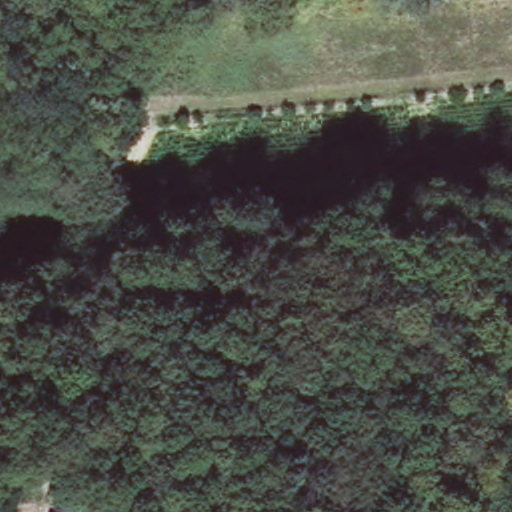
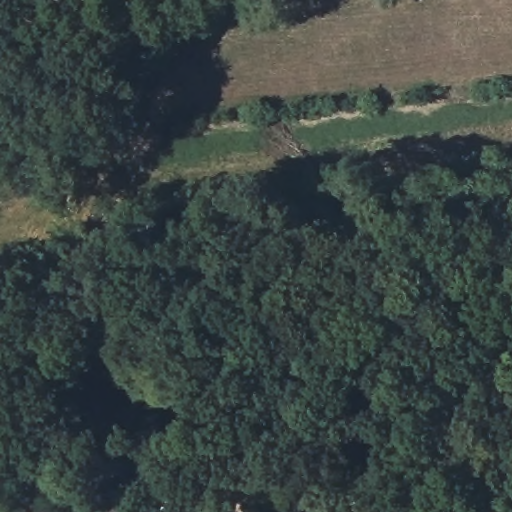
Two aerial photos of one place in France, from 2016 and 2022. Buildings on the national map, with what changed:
unchanged [(210,487),(208,512),(161,512),(165,482),(210,487)]

